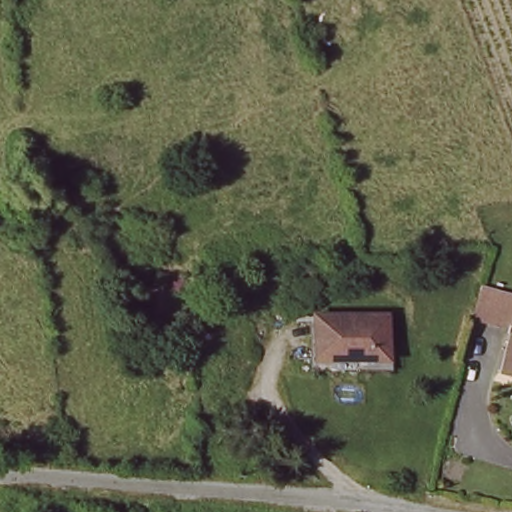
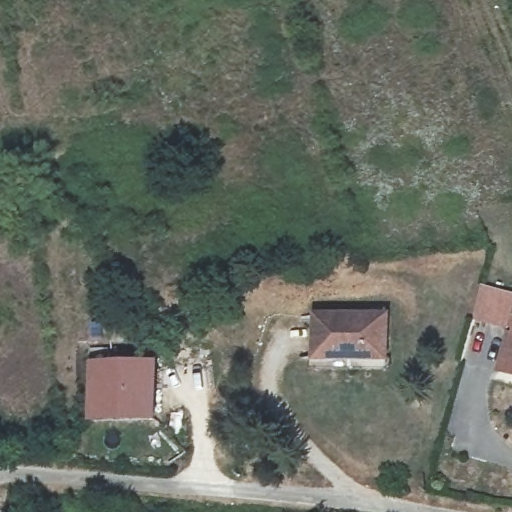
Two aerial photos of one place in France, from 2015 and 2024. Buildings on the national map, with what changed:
unchanged [(512,329),(471,317),(478,282),(512,291),(512,377),(500,372),(512,329)]
unchanged [(314,314),(369,313),(387,313),(386,357),(361,358),(313,359),(314,314)]
new [(160,363),(159,424),(90,423),(90,362),(160,363)]

